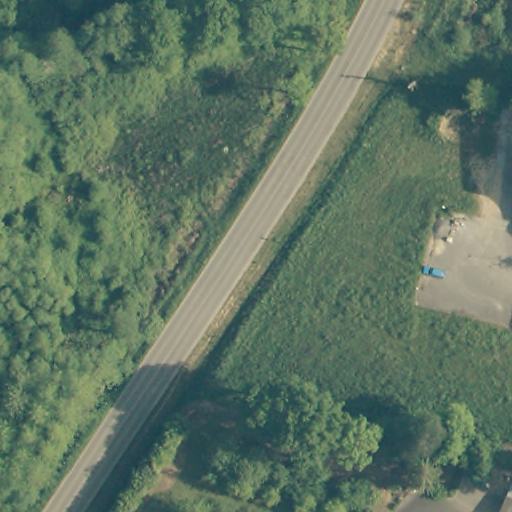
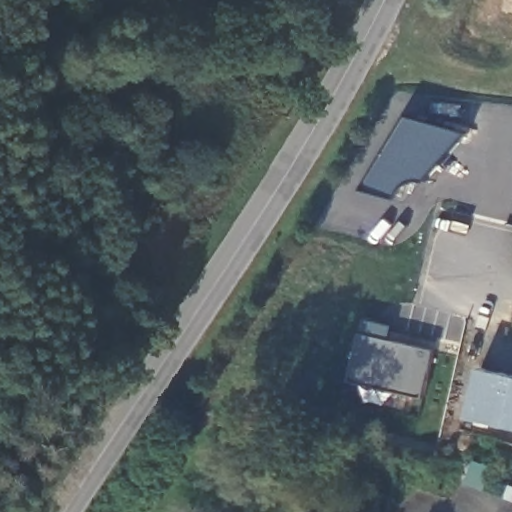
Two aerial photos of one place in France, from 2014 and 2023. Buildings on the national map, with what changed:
new [(365,188),(409,114),(470,131),(426,181),(408,200),(396,197),(365,188)]
new [(425,398),(352,381),(364,332),(367,317),(397,324),(393,339),(437,349),(425,398)]
new [(512,425),(470,416),(481,365),(512,372),(512,425)]
unchanged [(512,492),(512,512),(503,512),(512,492)]

